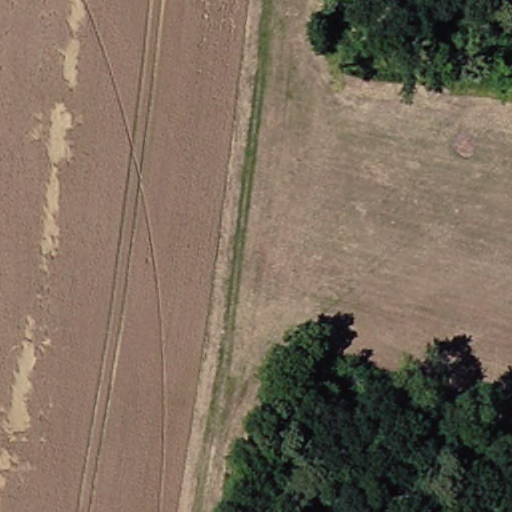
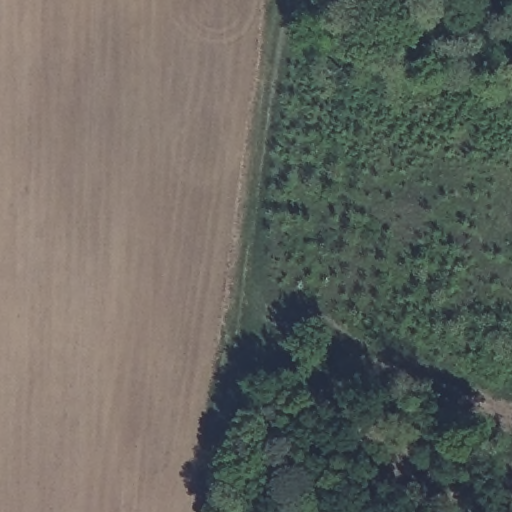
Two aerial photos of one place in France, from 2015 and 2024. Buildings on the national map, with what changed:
[]

